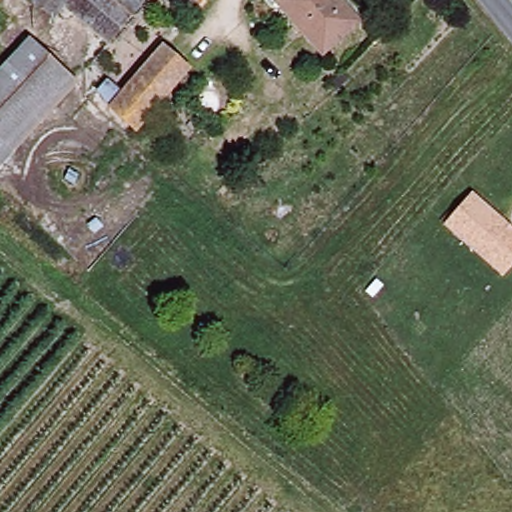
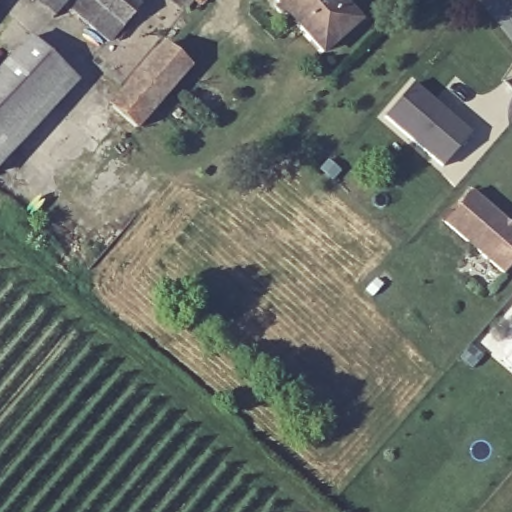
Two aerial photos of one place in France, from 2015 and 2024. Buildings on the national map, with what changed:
unchanged [(106,40),(63,4),(51,16),(32,0),(139,0),(106,40)]
unchanged [(200,1),(205,5),(199,14),(182,0),(201,0),(200,1)]
unchanged [(355,16),(318,48),(273,0),(340,0),(355,16)]
unchanged [(22,36),(62,67),(0,143),(0,62),(22,36)]
unchanged [(107,107),(160,48),(183,68),(131,128),(107,107)]
unchanged [(62,67),(72,75),(0,159),(0,143),(62,67)]
new [(384,119),(412,86),(470,135),(440,169),(384,119)]
unchanged [(512,264),(502,276),(443,224),(470,192),(512,226),(512,264)]

